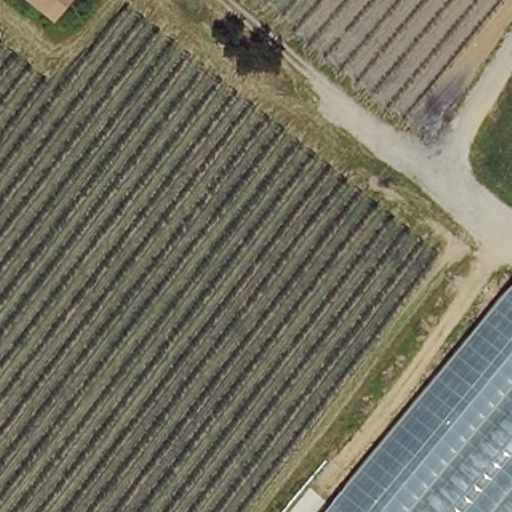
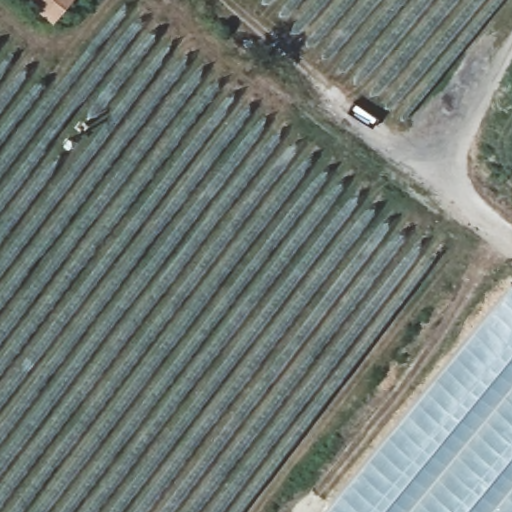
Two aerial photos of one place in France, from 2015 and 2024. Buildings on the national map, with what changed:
unchanged [(41,0),(68,0),(58,13),(41,0)]
unchanged [(511,285),(512,286),(512,512),(325,512),(511,285)]

